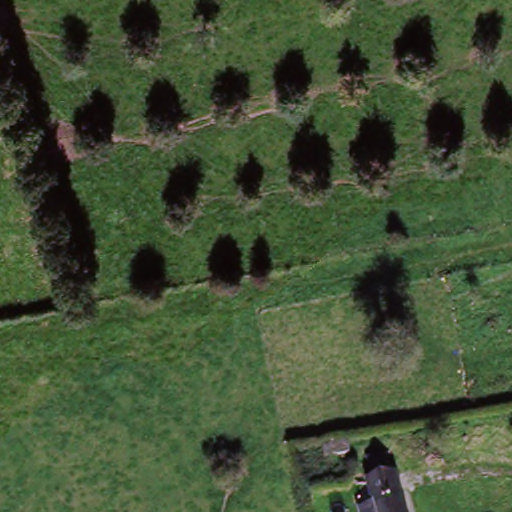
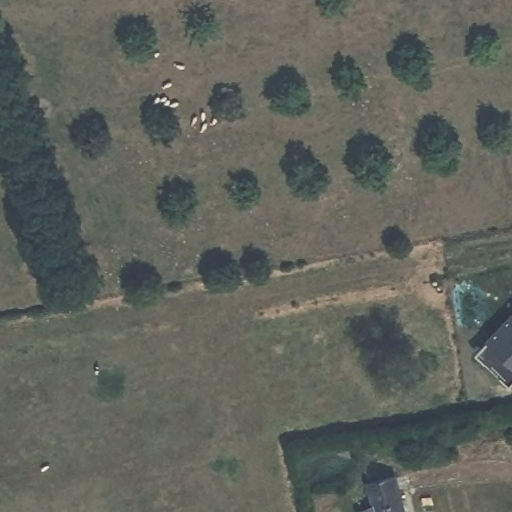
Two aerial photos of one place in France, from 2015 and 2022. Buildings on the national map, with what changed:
new [(512,379),(510,380),(477,348),(512,312),(512,379)]
unchanged [(325,461),(300,467),(297,453),(342,443),(345,457),(325,461)]
unchanged [(389,460),(392,473),(402,512),(357,512),(355,504),(372,500),(367,480),(364,467),(389,460)]

